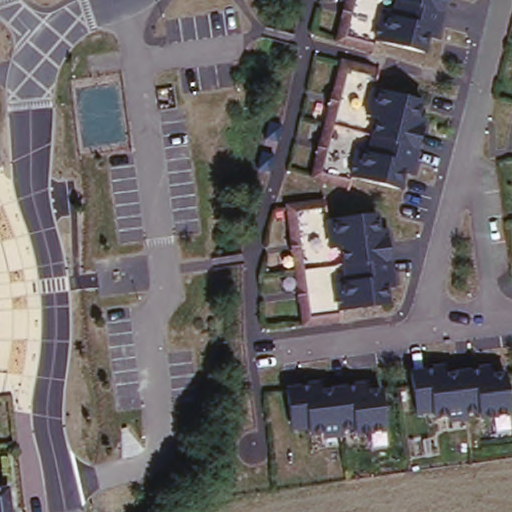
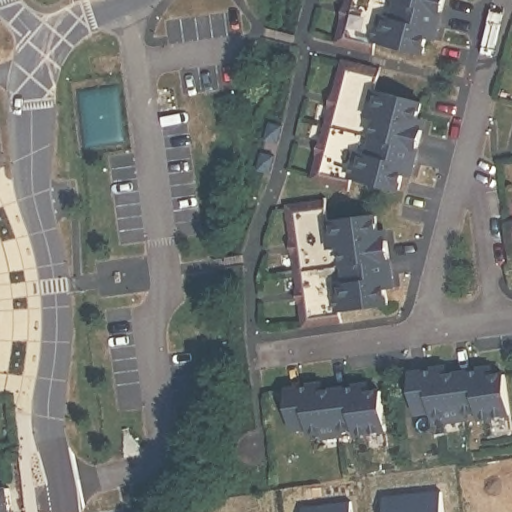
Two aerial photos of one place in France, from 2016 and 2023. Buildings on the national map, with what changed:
unchanged [(352,0),(446,0),(433,42),(427,41),(421,54),(376,42),(371,55),(337,44),(352,0)]
unchanged [(330,126),(345,67),(378,78),(374,90),(425,102),(420,122),(427,125),(415,177),(407,175),(402,191),(351,178),(351,182),(318,173),(330,126)]
unchanged [(301,274),(290,211),(325,204),(329,219),(376,210),(381,239),(385,239),(392,289),(389,289),(392,304),(339,309),(338,324),(306,329),(305,317),(301,274)]
unchanged [(405,370),(426,366),(427,371),(493,359),(494,367),(503,366),(509,409),(436,425),(434,414),(415,419),(405,370)]
unchanged [(282,383),(302,379),(301,388),(343,380),(342,385),(375,379),(377,386),(382,426),(307,442),(306,431),(289,434),(282,383)]
unchanged [(0,512),(0,486),(10,485),(13,512),(0,512)]
new [(441,512),(384,512),(382,498),(439,491),(441,512)]
new [(349,512),(301,512),(300,508),(348,501),(349,512)]

